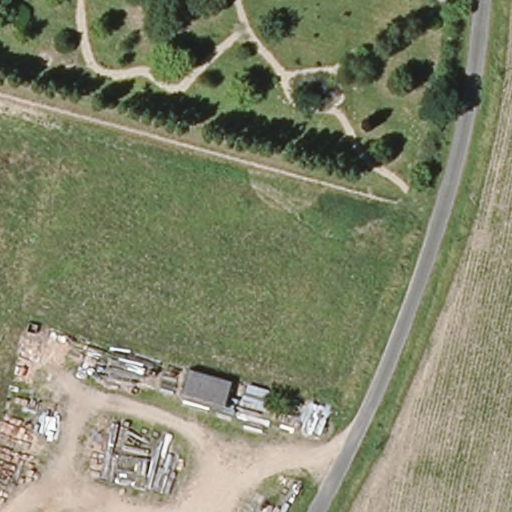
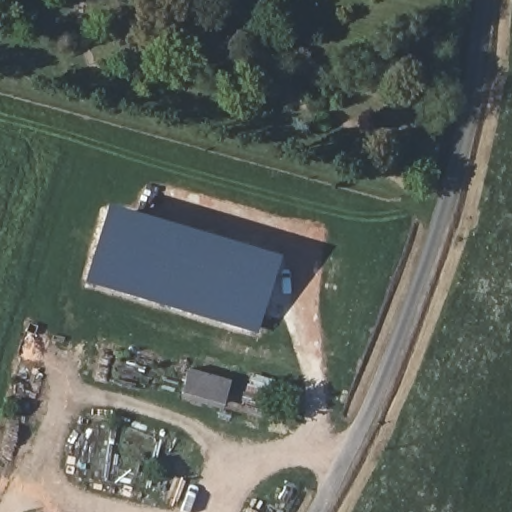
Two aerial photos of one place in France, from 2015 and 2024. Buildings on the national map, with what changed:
new [(86,282),(107,204),(282,257),(258,332),(86,282)]
new [(230,380),(223,410),(182,398),(190,368),(230,380)]

